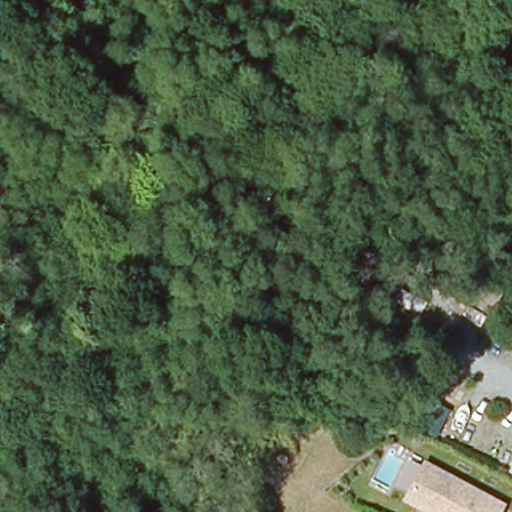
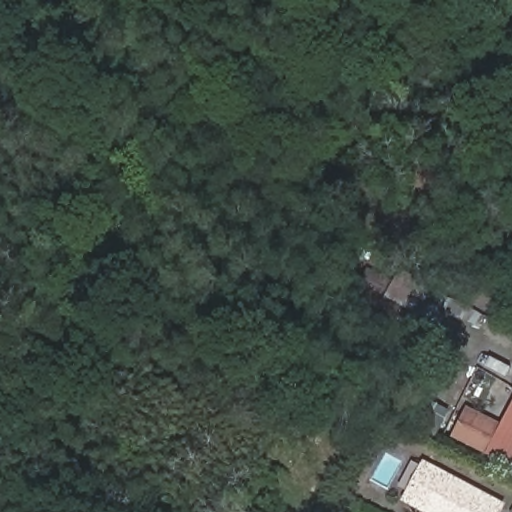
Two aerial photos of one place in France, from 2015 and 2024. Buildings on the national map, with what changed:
new [(450,411),(436,438),(423,431),(437,405),(450,411)]
new [(467,406),(502,423),(512,405),(512,463),(510,467),(451,437),(467,406)]
unchanged [(499,512),(420,512),(399,501),(419,460),(505,503),(499,512)]
unchanged [(507,472),(512,463),(512,475),(507,472)]

